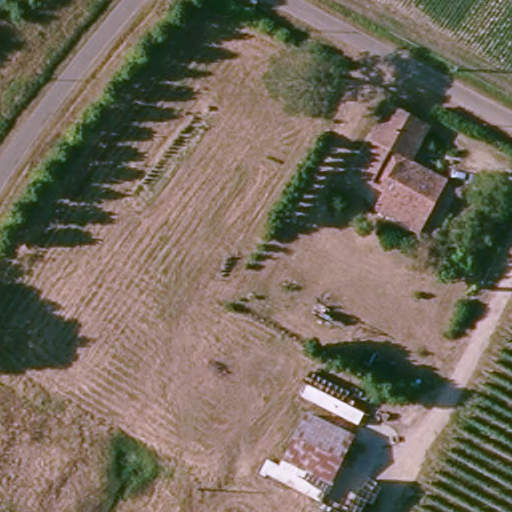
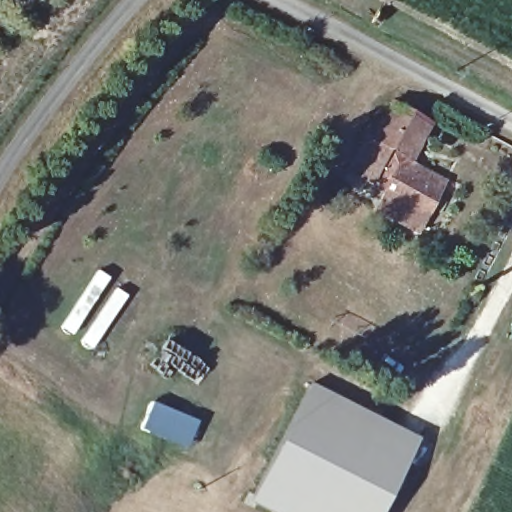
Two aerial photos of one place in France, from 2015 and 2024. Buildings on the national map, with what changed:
new [(370,139),(391,100),(432,123),(412,162),(447,180),(419,237),(372,214),(382,194),(371,189),(372,185),(352,174),(370,139)]
demolished [(380,126),(421,146),(416,157),(444,171),(427,207),(357,170),(380,126)]
new [(419,438),(382,512),(269,512),(250,502),(311,382),(419,438)]
new [(198,420),(188,448),(142,428),(152,401),(198,420)]

